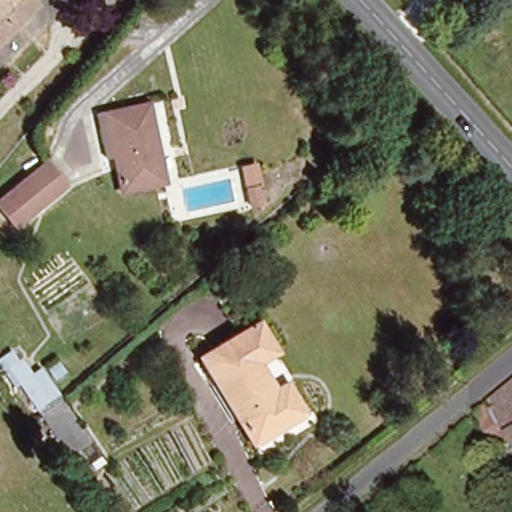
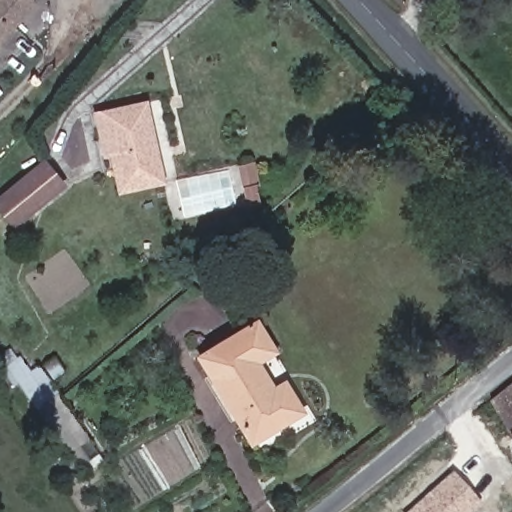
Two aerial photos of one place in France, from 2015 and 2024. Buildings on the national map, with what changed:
unchanged [(0,36),(0,0),(30,0),(34,3),(0,36)]
unchanged [(103,111),(146,102),(163,181),(121,190),(103,111)]
unchanged [(10,225),(0,213),(0,193),(40,160),(60,184),(10,225)]
unchanged [(163,223),(158,205),(168,203),(173,220),(163,223)]
unchanged [(259,321),(275,353),(259,362),(270,388),(282,383),(300,414),(246,446),(196,358),(259,321)]
unchanged [(26,363),(35,378),(44,372),(61,398),(42,412),(14,371),(26,363)]
unchanged [(512,384),(512,443),(498,451),(476,413),(512,384)]
unchanged [(64,402),(94,444),(74,458),(45,416),(64,402)]
new [(474,512),(408,512),(453,471),(481,506),(474,512)]

